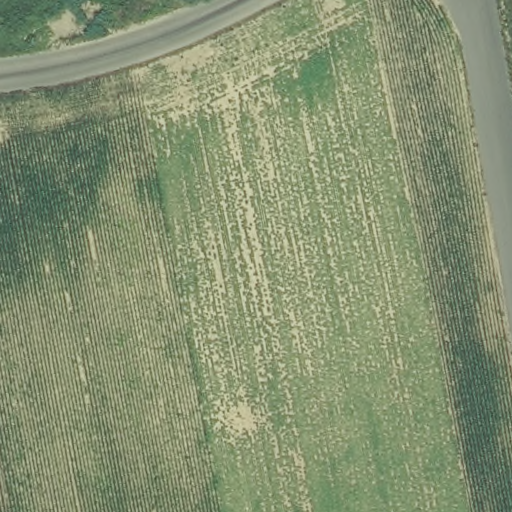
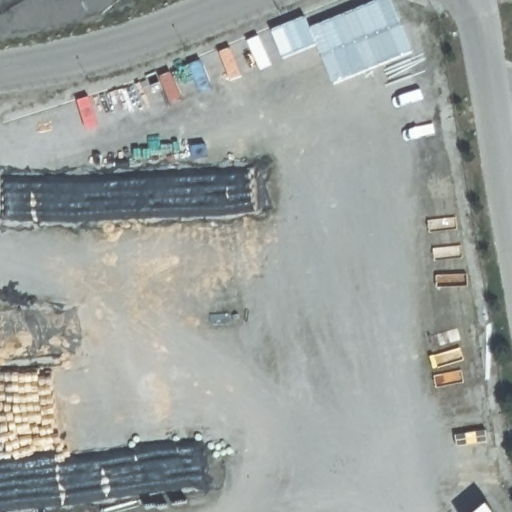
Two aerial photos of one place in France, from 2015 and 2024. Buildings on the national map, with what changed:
new [(379,0),(392,0),(414,52),(334,85),(318,46),(312,28),(379,0)]
new [(307,17),(312,28),(318,46),(284,59),(273,32),(307,17)]

